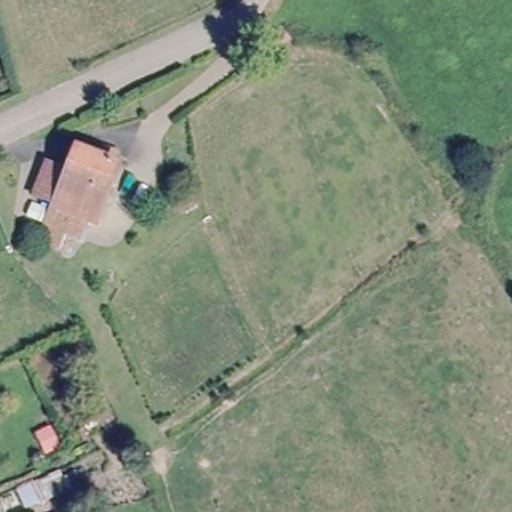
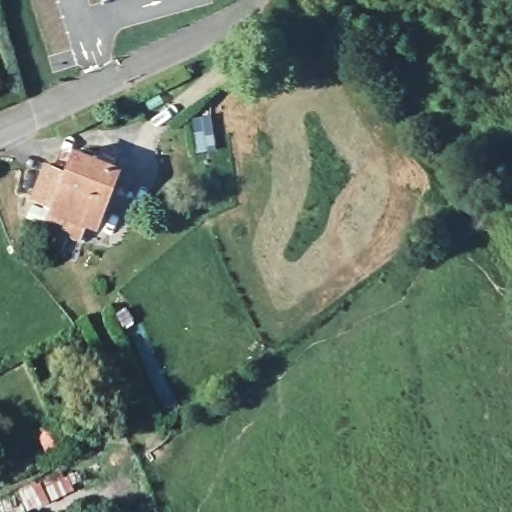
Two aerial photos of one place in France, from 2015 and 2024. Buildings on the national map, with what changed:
unchanged [(76,168),(83,148),(123,163),(112,192),(102,220),(102,221),(90,217),(76,211),(70,228),(65,240),(47,233),(58,204),(59,199),(44,194),(40,193),(52,160),(56,162),(75,169),(76,168)]

